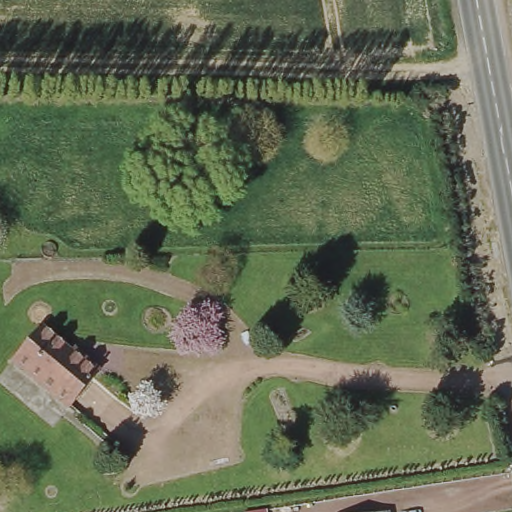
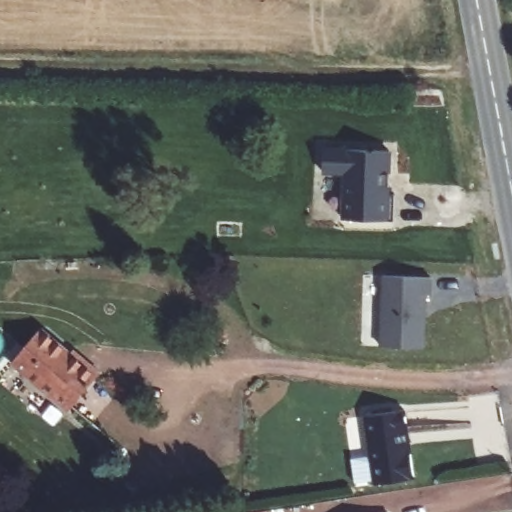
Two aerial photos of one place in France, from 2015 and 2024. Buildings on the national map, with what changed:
new [(344,174),(324,173),(325,146),(393,151),(392,173),(382,173),(382,185),(392,185),(391,220),(342,219),(344,174)]
new [(382,275),(432,277),(431,295),(427,295),(425,347),(379,346),(382,275)]
unchanged [(46,328),(101,373),(74,407),(17,361),(46,328)]
new [(374,483),(365,415),(401,410),(406,421),(410,448),(395,480),(374,483)]
unchanged [(400,508),(401,512),(366,512),(400,508)]

